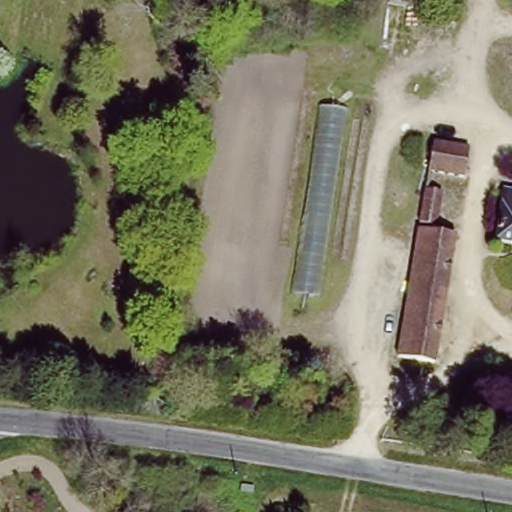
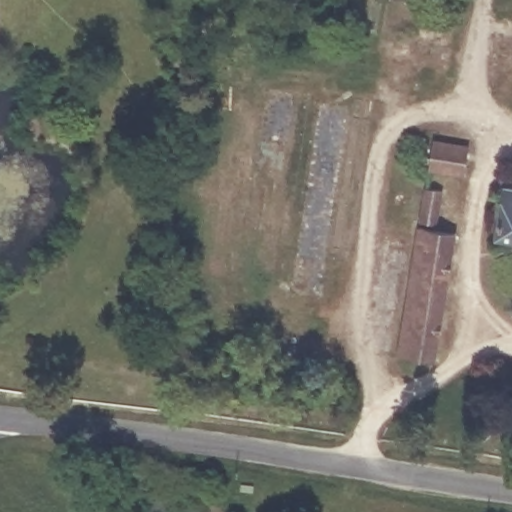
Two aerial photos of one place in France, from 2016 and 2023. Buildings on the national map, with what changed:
unchanged [(347,109),(315,299),(287,294),(317,104),(347,109)]
unchanged [(463,147),(458,176),(420,170),(425,141),(463,147)]
unchanged [(441,188),(435,220),(417,217),(422,185),(441,188)]
unchanged [(512,194),(512,244),(487,239),(495,191),(512,194)]
unchanged [(452,230),(433,360),(395,354),(415,223),(452,230)]

